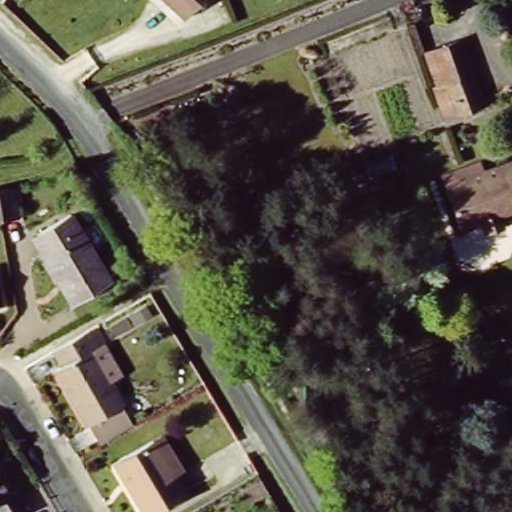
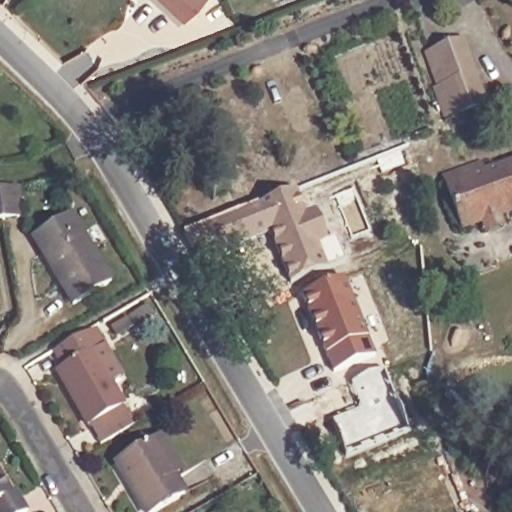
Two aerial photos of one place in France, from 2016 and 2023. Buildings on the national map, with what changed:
unchanged [(171,24),(150,0),(198,0),(171,24)]
unchanged [(426,53),(433,50),(464,39),(487,106),(446,120),(434,87),(437,86),(426,53)]
unchanged [(481,232),(477,221),(456,228),(441,186),(437,176),(477,163),(480,172),(512,161),(512,209),(494,215),(498,226),(481,232)]
unchanged [(21,216),(3,219),(0,220),(0,189),(15,186),(21,216)]
new [(296,189),(306,214),(315,210),(328,240),(336,237),(346,261),(291,284),(271,233),(223,253),(211,223),(296,189)]
unchanged [(68,305),(35,252),(27,237),(31,235),(67,214),(108,281),(68,305)]
new [(344,278),(375,356),(333,373),(317,332),(319,331),(313,316),(311,317),(302,294),(344,278)]
unchanged [(146,307),(151,315),(136,325),(131,316),(146,307)]
unchanged [(90,425),(88,426),(56,370),(63,366),(54,351),(95,327),(124,376),(111,383),(125,406),(124,407),(134,425),(101,445),(90,425)]
unchanged [(180,472),(171,478),(181,493),(149,512),(140,512),(111,462),(149,440),(158,435),(180,472)]
unchanged [(10,490),(23,510),(21,512),(0,512),(0,480),(7,492),(10,490)]

